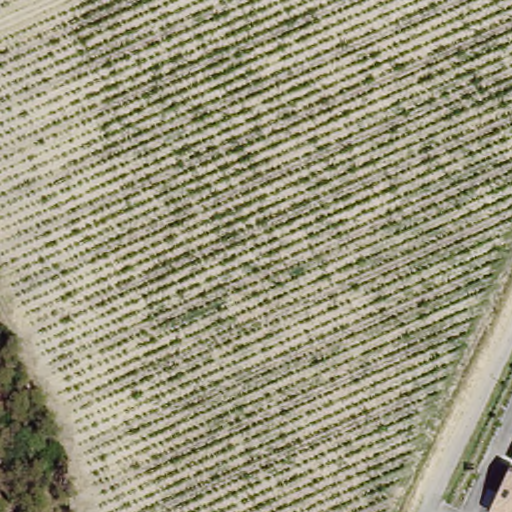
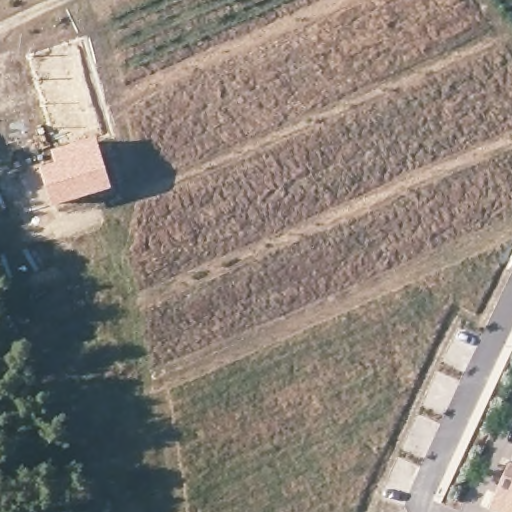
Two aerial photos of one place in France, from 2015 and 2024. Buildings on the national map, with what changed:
new [(54,163),(51,152),(97,139),(113,191),(52,208),(40,168),(54,163)]
unchanged [(512,468),(512,512),(494,512),(489,509),(511,467),(512,468)]

